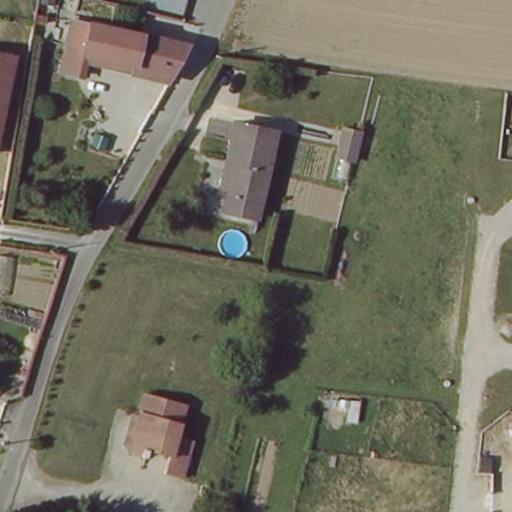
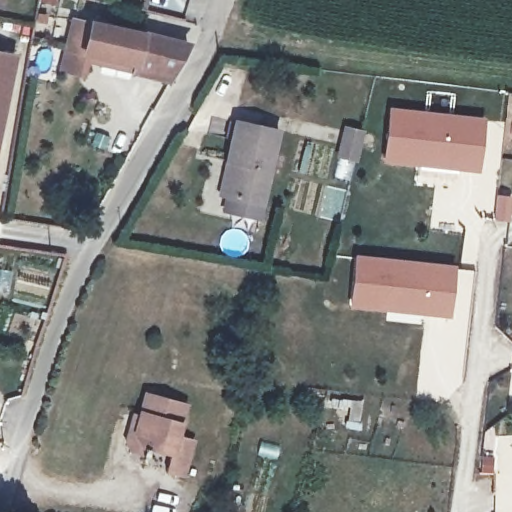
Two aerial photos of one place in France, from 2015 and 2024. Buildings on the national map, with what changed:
unchanged [(193,41),(191,43),(183,66),(180,73),(177,80),(139,73),(93,65),(94,50),(73,47),(72,47),(75,24),(78,17),(171,36),(193,41)]
unchanged [(0,58),(14,60),(0,132),(0,58)]
new [(486,119),(480,173),(381,161),(389,107),(486,119)]
unchanged [(220,214),(223,191),(216,190),(222,166),(233,119),(278,129),(261,199),(257,221),(220,214)]
new [(455,266),(449,317),(349,307),(354,255),(455,266)]
unchanged [(147,392),(185,401),(178,435),(191,439),(181,475),(163,470),(168,455),(143,448),(136,434),(147,392)]

